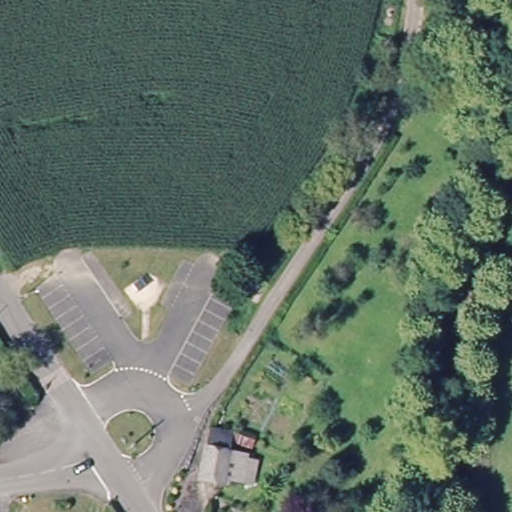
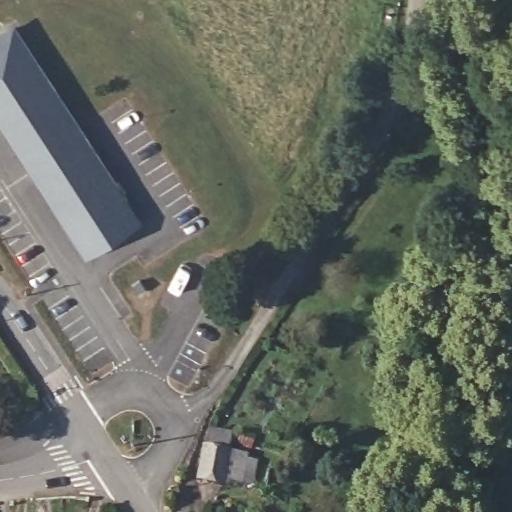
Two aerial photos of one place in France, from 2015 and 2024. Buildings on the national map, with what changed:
new [(0,125),(0,33),(16,23),(141,220),(85,258),(0,125)]
unchanged [(253,282),(244,297),(226,288),(236,273),(253,282)]
unchanged [(233,434),(230,452),(247,455),(241,483),(226,486),(201,480),(211,428),(233,434)]

